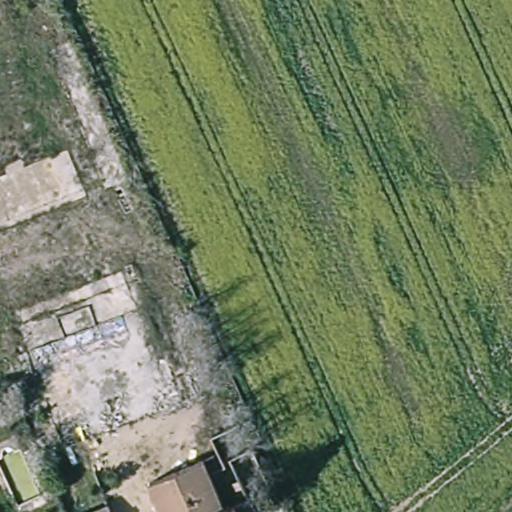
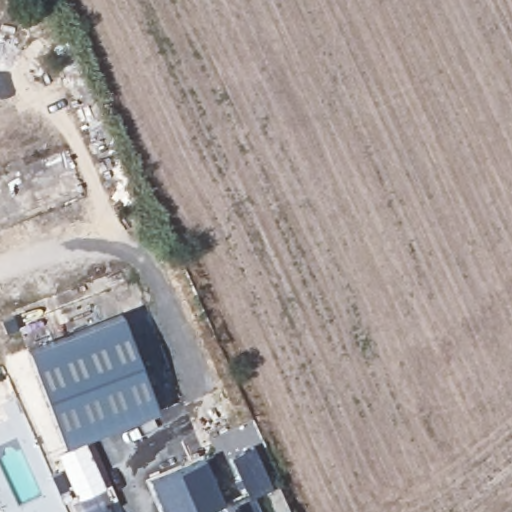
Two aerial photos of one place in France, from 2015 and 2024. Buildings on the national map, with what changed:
new [(122,315),(158,410),(63,447),(27,351),(122,315)]
new [(105,488),(78,500),(59,455),(85,444),(105,488)]
new [(259,496),(253,499),(255,501),(251,502),(250,503),(229,458),(253,447),(276,491),(285,512),(265,512),(259,498),(259,496)]
unchanged [(217,512),(159,512),(149,490),(199,469),(204,482),(218,512),(217,512)]
demolished [(276,491),(285,512),(265,512),(259,498),(276,491)]
unchanged [(256,512),(229,512),(251,502),(256,512)]
new [(111,512),(95,512),(108,506),(111,512)]
demolished [(140,512),(133,512),(139,510),(140,512)]

